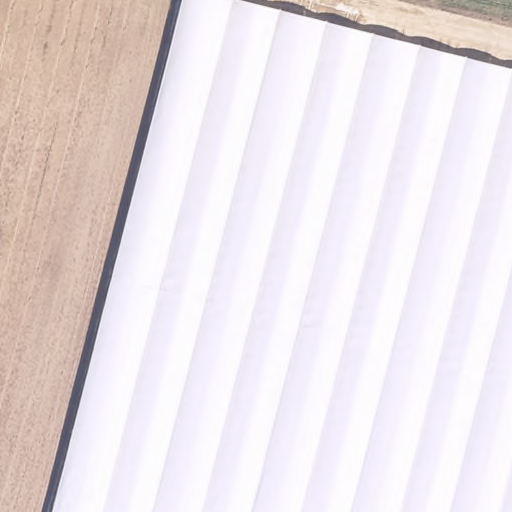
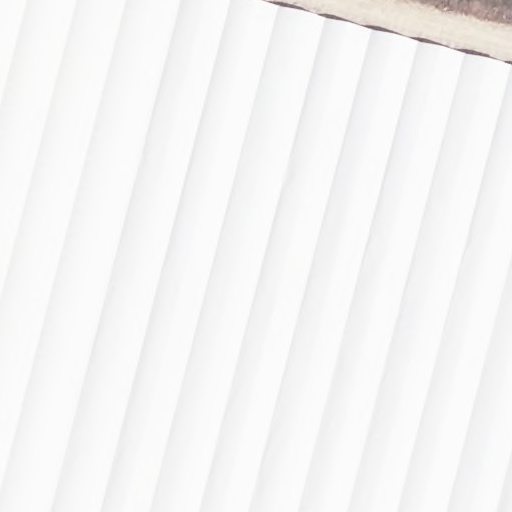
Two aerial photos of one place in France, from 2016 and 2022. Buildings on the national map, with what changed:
new [(113,265),(53,512),(0,512),(0,0),(177,0),(113,265)]
unchanged [(512,68),(512,512),(53,512),(113,265),(177,0),(231,0),(457,55),(512,68)]

